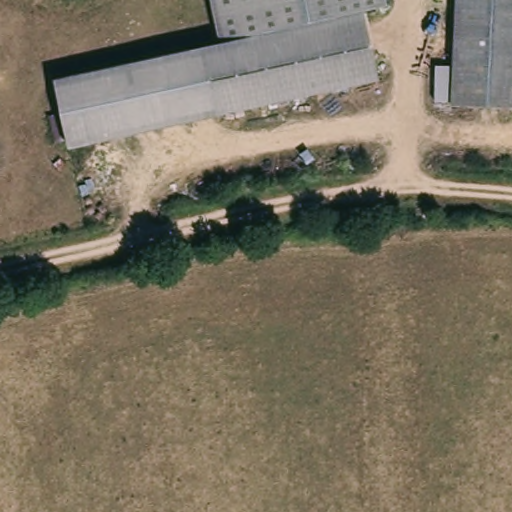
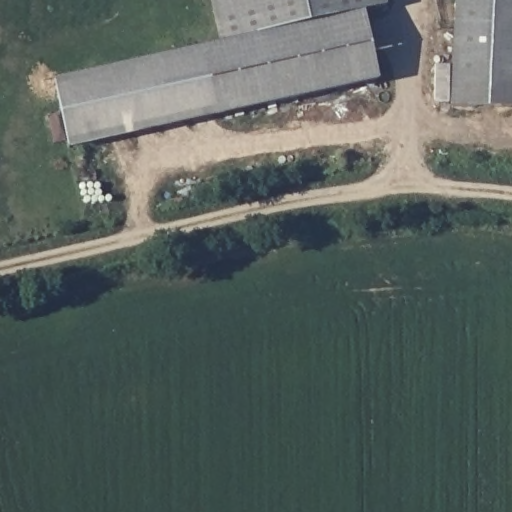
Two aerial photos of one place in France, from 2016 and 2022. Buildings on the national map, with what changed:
unchanged [(367,12),(383,81),(219,118),(205,47),(226,41),(216,0),(237,0),(244,37),(367,12)]
unchanged [(367,12),(244,37),(237,0),(386,0),(387,8),(367,12)]
unchanged [(451,104),(435,103),(435,66),(452,66),(455,0),(512,0),(512,107),(451,104)]
unchanged [(219,118),(70,149),(57,78),(205,47),(219,118)]

